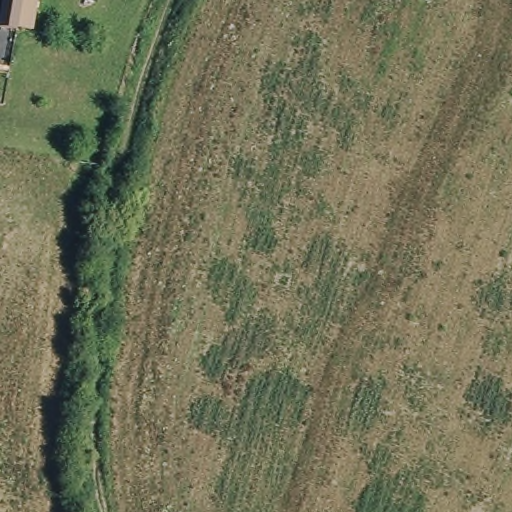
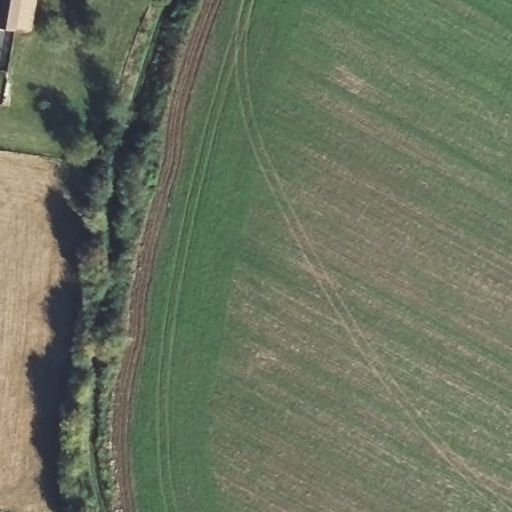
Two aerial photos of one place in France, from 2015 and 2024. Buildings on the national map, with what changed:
unchanged [(14,31),(0,29),(0,4),(1,0),(19,0),(14,31)]

